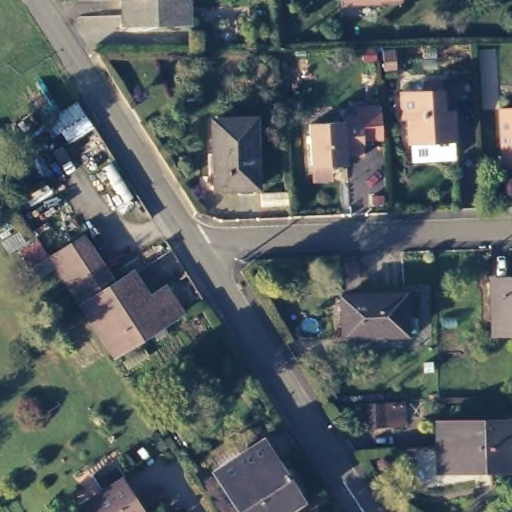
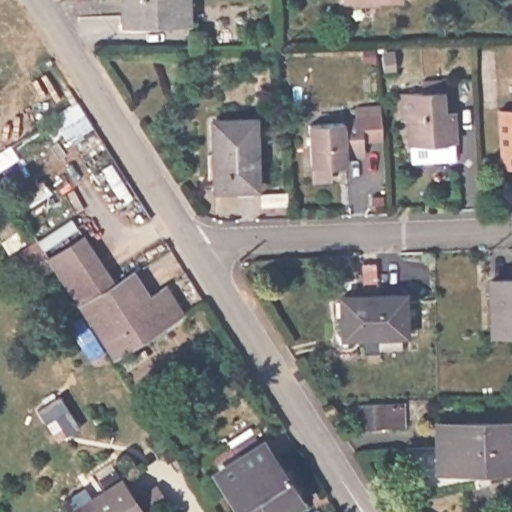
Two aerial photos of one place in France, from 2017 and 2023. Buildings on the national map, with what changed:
unchanged [(125,23),(124,0),(181,0),(182,20),(125,23)]
unchanged [(400,0),(350,1),(350,0),(400,0)]
unchanged [(428,143),(428,139),(407,140),(407,118),(403,118),(402,93),(443,91),(445,110),(455,110),(456,142),(428,143)]
unchanged [(501,169),(500,111),(512,111),(512,169),(501,169)]
unchanged [(312,174),(312,160),(311,119),(345,117),(345,113),(381,112),(383,140),(366,140),(365,154),(347,154),(347,160),(327,160),(328,174),(312,174)]
unchanged [(215,192),(213,117),(252,117),(255,191),(215,192)]
unchanged [(51,253),(82,232),(113,278),(81,298),(51,253)]
unchanged [(81,298),(113,278),(130,268),(148,296),(167,285),(180,309),(114,350),(81,298)]
unchanged [(512,281),(512,335),(491,335),(488,281),(512,281)]
unchanged [(402,298),(403,338),(340,341),(340,300),(402,298)]
unchanged [(385,410),(385,430),(357,430),(357,411),(385,410)]
unchanged [(506,427),(507,472),(440,475),(438,429),(506,427)]
unchanged [(238,512),(212,471),(257,443),(268,461),(281,455),(303,490),(301,510),(298,512),(278,512),(275,507),(267,512),(238,512)]
unchanged [(112,480),(135,512),(70,512),(68,508),(112,480)]

